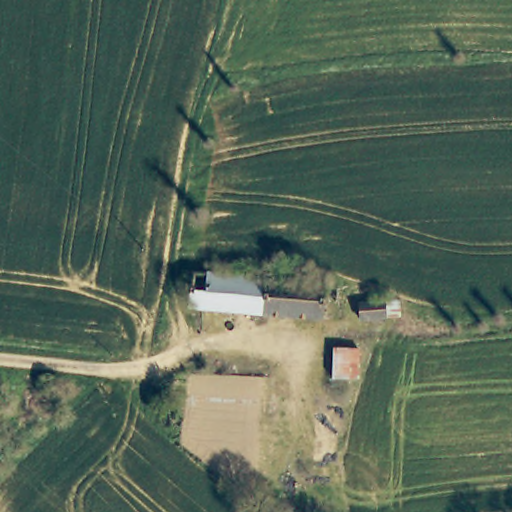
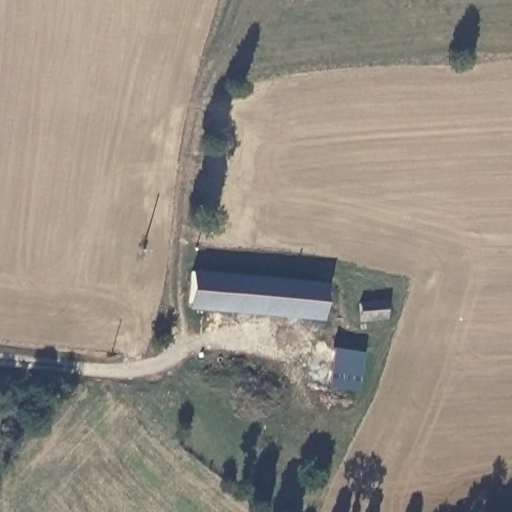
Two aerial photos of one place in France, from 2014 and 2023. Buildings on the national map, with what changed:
unchanged [(196,267),(325,283),(321,316),(191,303),(196,267)]
unchanged [(396,310),(393,327),(371,326),(372,308),(396,310)]
unchanged [(365,361),(357,387),(333,382),(335,380),(340,356),(365,361)]

